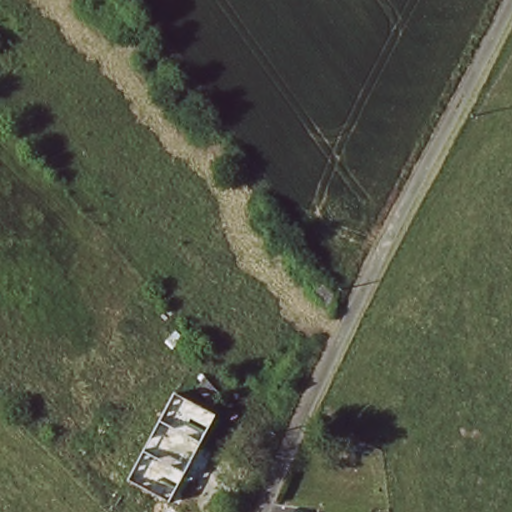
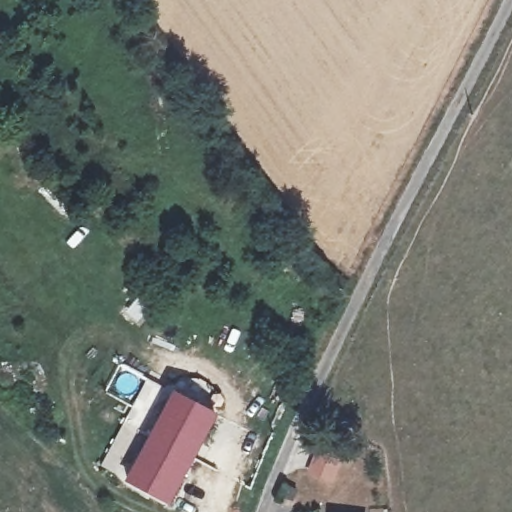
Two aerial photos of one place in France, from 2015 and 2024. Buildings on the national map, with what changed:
demolished [(225,389),(190,419),(182,411),(200,392),(195,387),(210,372),(225,389)]
new [(168,504),(125,480),(174,390),(217,414),(168,504)]
new [(322,448),(343,457),(332,483),(310,474),(322,448)]

